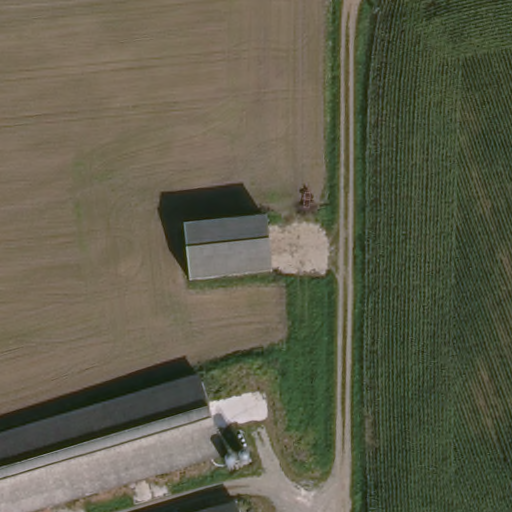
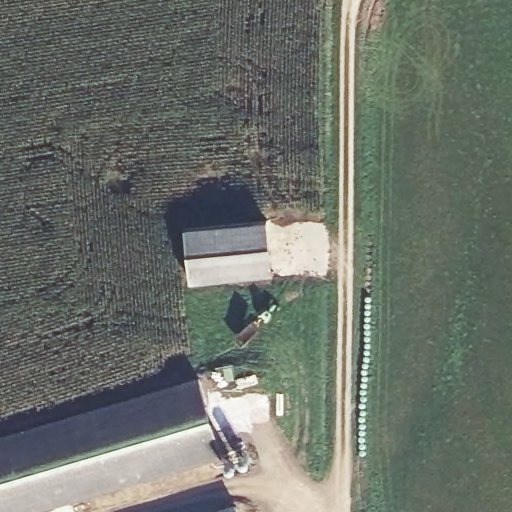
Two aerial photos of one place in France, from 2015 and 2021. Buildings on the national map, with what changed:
unchanged [(270,224),(276,277),(193,288),(187,230),(270,224)]
unchanged [(194,382),(217,461),(42,512),(0,512),(0,439),(194,382)]
unchanged [(237,508),(238,512),(223,512),(237,508)]

